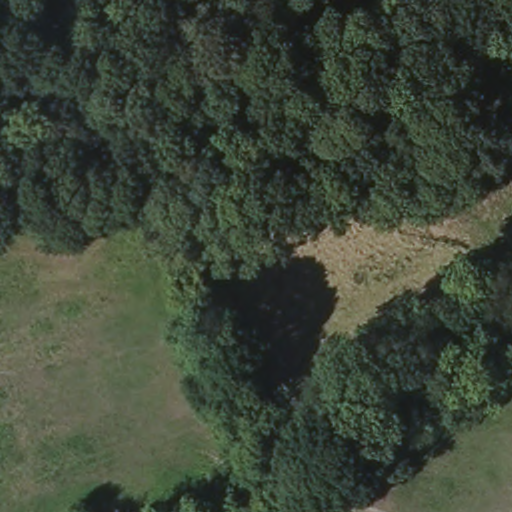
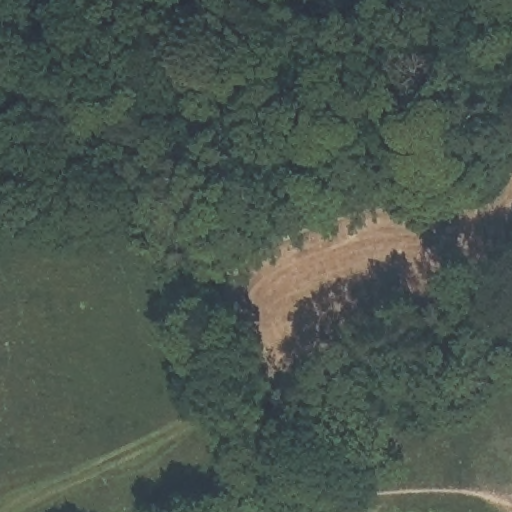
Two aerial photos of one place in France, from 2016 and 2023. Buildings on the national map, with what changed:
[]

